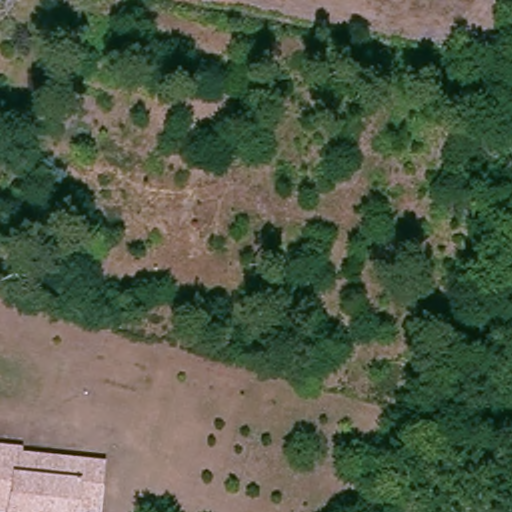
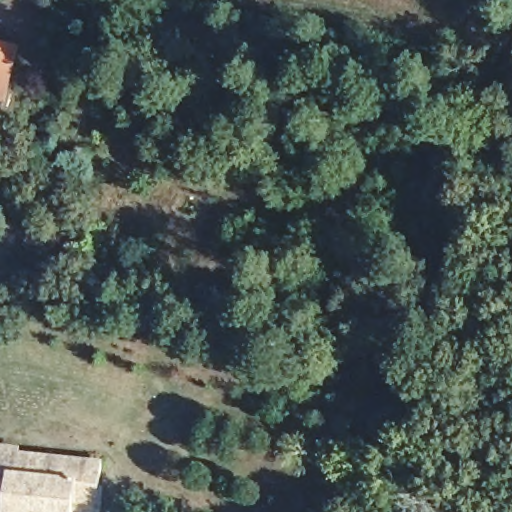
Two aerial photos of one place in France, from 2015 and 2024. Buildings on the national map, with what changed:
new [(0,41),(19,46),(8,101),(0,99),(0,41)]
unchanged [(0,448),(19,452),(18,456),(46,461),(45,463),(69,467),(69,465),(102,471),(99,492),(95,512),(6,512),(0,511),(0,448)]

